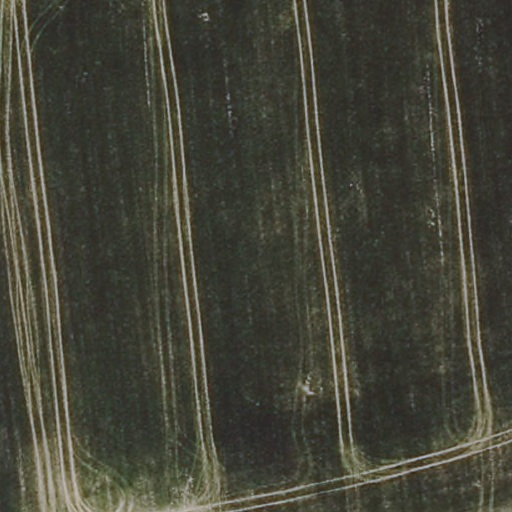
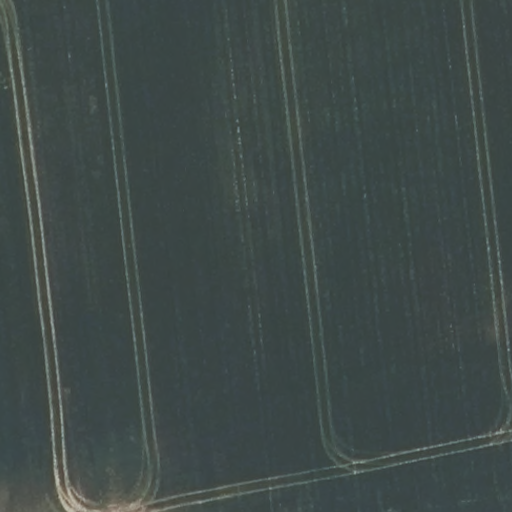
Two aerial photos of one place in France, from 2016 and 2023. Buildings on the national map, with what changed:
[]

